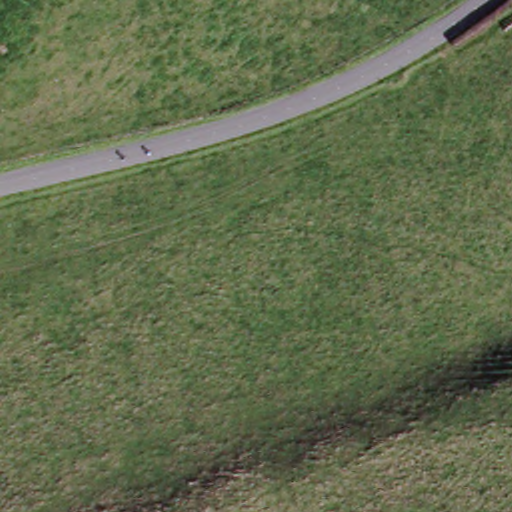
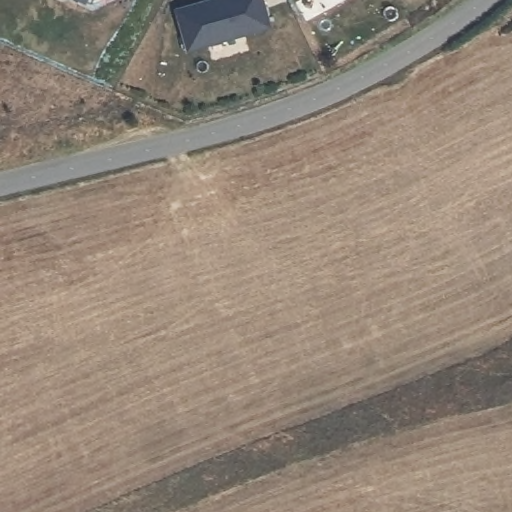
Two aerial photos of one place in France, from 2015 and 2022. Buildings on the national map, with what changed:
new [(92,3),(86,0),(94,0),(92,3)]
new [(213,0),(264,0),(273,29),(190,54),(177,11),(213,0)]

